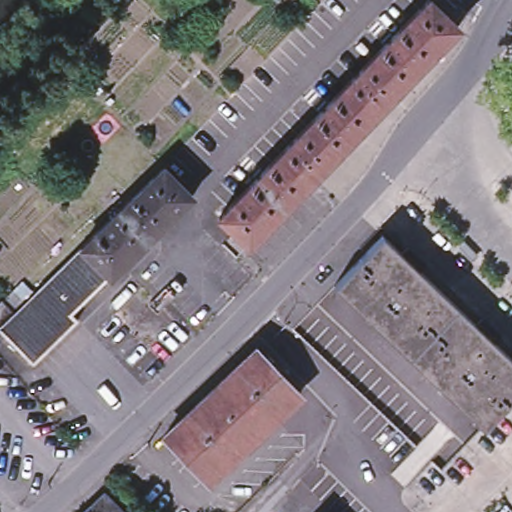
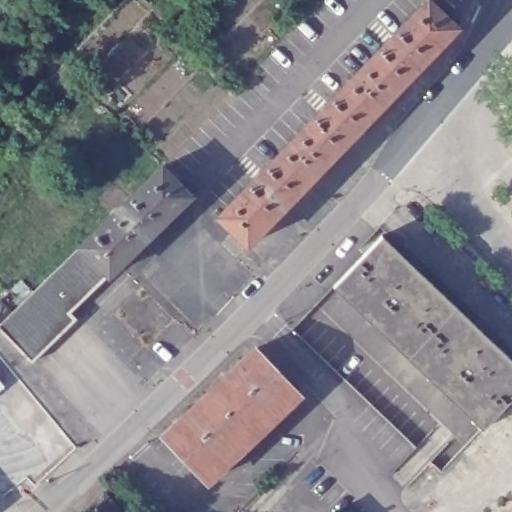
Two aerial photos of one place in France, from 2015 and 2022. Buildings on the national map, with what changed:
unchanged [(424,0),(433,0),(457,23),(380,104),(350,76),(424,0)]
unchanged [(380,104),(326,159),(297,131),(350,76),(380,104)]
unchanged [(326,159),(248,240),(219,212),(297,131),(326,159)]
unchanged [(162,167),(191,196),(110,275),(82,245),(162,167)]
unchanged [(512,362),(512,397),(481,429),(332,286),(381,235),(512,362)]
unchanged [(82,245),(110,275),(71,312),(77,318),(31,363),(0,331),(0,299),(1,298),(14,312),(82,245)]
unchanged [(253,346),(297,391),(203,480),(160,435),(253,346)]
unchanged [(126,512),(82,512),(80,510),(102,488),(126,512)]

